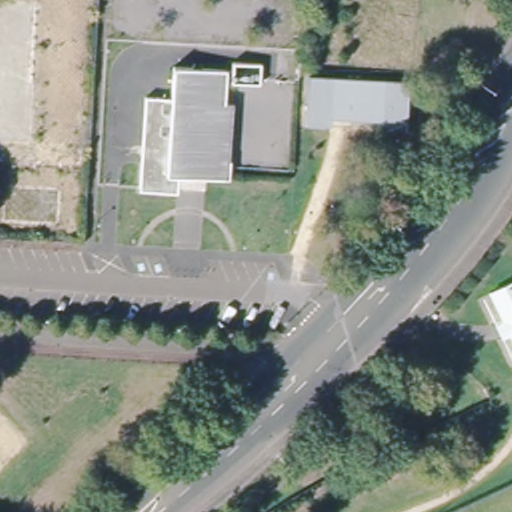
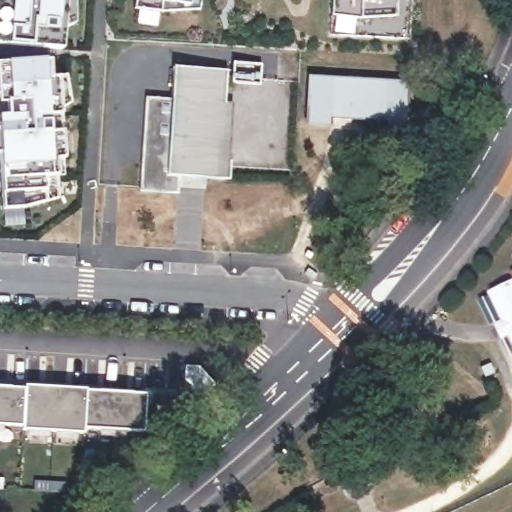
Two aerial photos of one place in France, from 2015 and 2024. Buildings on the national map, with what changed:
new [(61,50),(30,46),(7,44),(0,44),(0,0),(73,0),(74,25),(62,27),(61,50)]
new [(163,9),(137,8),(137,0),(203,0),(201,9),(163,9)]
new [(332,12),(333,0),(395,0),(394,15),(358,17),(332,12)]
unchanged [(262,57),(262,77),(232,76),(234,55),(262,57)]
new [(43,62),(50,60),(51,77),(60,77),(66,75),(71,104),(61,110),(65,158),(57,159),(58,178),(60,198),(48,202),(30,207),(3,209),(2,192),(2,181),(1,170),(0,164),(0,65),(7,64),(43,62)]
unchanged [(224,153),(226,153),(224,172),(181,170),(180,187),(142,185),(147,91),(172,92),(174,61),(229,64),(224,153)]
unchanged [(310,74),(409,78),(407,126),(383,124),(383,117),(332,114),(331,122),(307,121),(310,74)]
unchanged [(509,338),(502,340),(492,324),(498,318),(487,290),(512,279),(512,344),(509,338)]
new [(186,365),(200,366),(216,383),(202,397),(186,378),(186,365)]
new [(25,384),(87,388),(86,389),(147,393),(144,432),(84,428),(84,432),(22,428),(22,426),(0,424),(0,385),(25,387),(25,384)]
demolished [(0,469),(0,405),(31,437),(0,469)]

